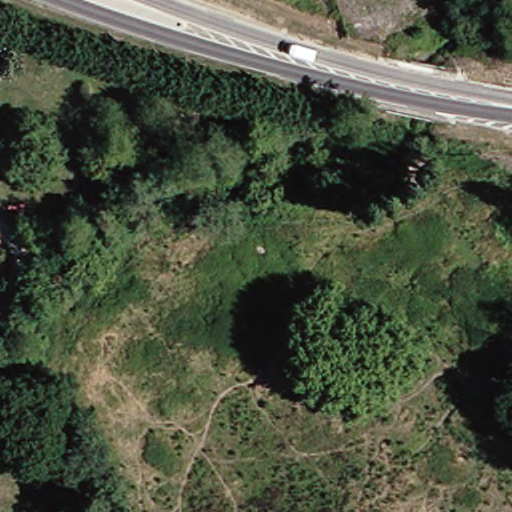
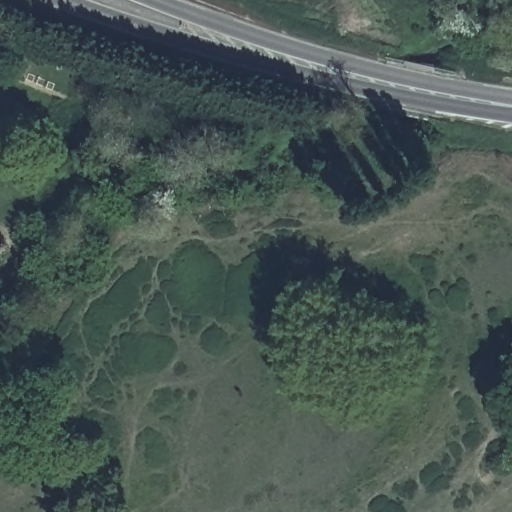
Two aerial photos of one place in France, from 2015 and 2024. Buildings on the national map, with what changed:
unchanged [(0,17),(3,18),(0,25),(0,17)]

